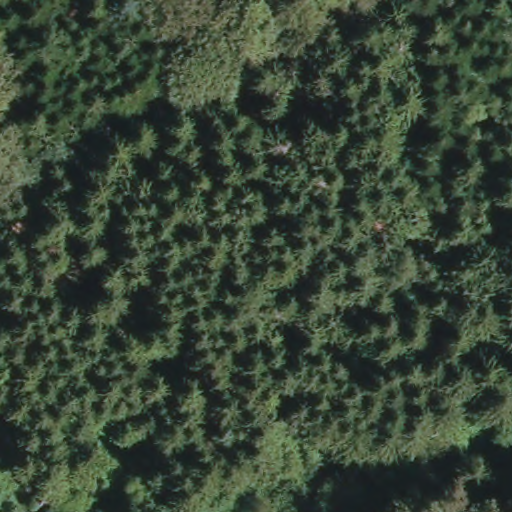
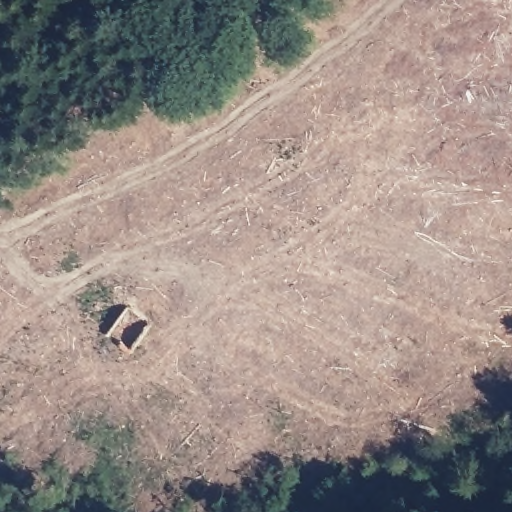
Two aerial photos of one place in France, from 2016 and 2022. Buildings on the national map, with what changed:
unchanged [(155,321),(134,351),(107,331),(130,301),(155,321)]

